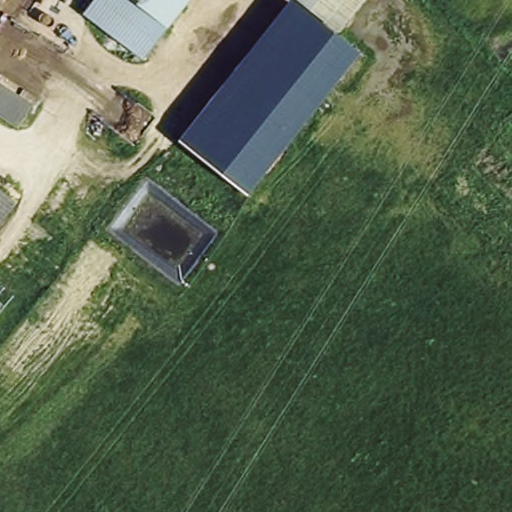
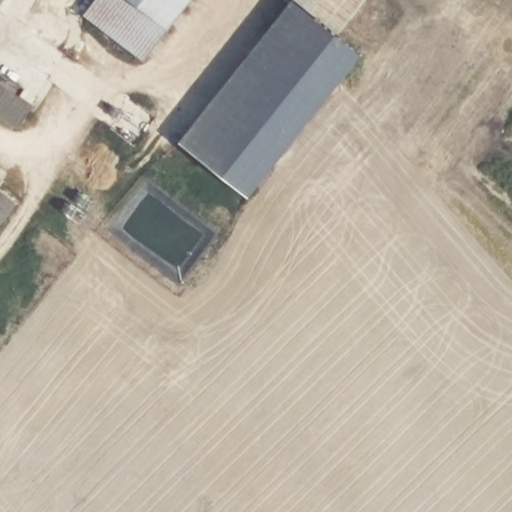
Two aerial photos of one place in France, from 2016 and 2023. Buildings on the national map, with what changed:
unchanged [(163,29),(140,57),(78,5),(83,0),(129,0),(163,29)]
unchanged [(129,0),(187,0),(163,29),(129,0)]
unchanged [(338,31),(361,47),(248,195),(179,141),(282,0),(296,0),(338,31)]
unchanged [(296,0),(364,0),(338,31),(296,0)]
unchanged [(0,78),(36,100),(17,128),(0,117),(0,78)]
unchanged [(0,221),(0,186),(16,200),(0,221)]

